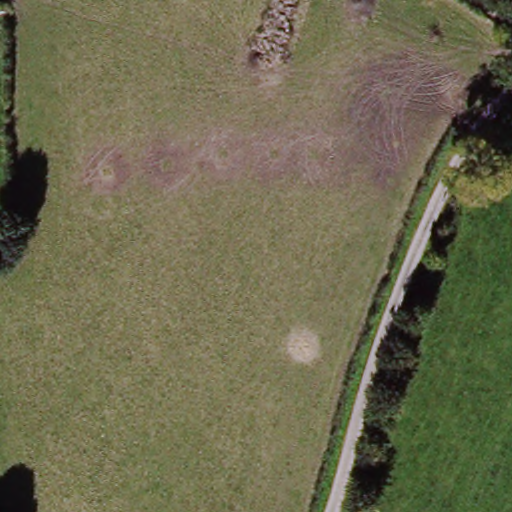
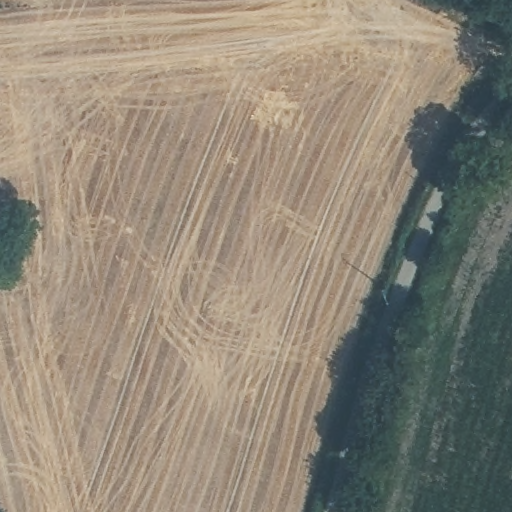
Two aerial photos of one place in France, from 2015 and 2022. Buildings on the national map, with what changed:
[]

